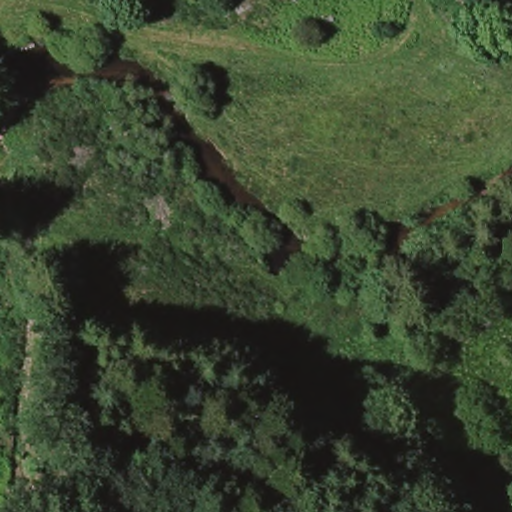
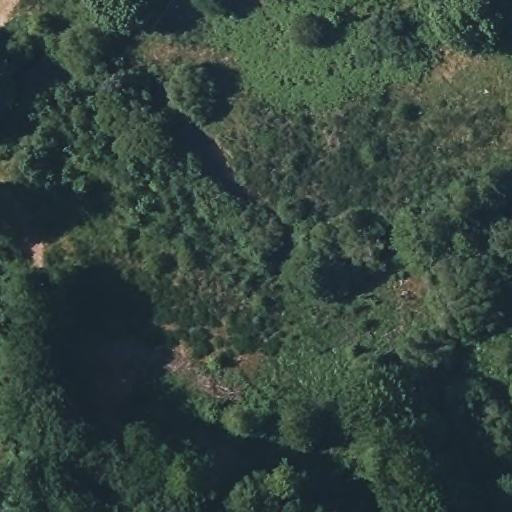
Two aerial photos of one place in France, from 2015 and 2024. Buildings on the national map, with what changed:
[]

